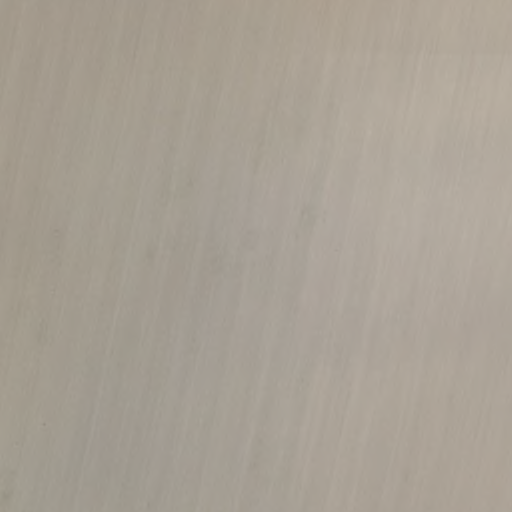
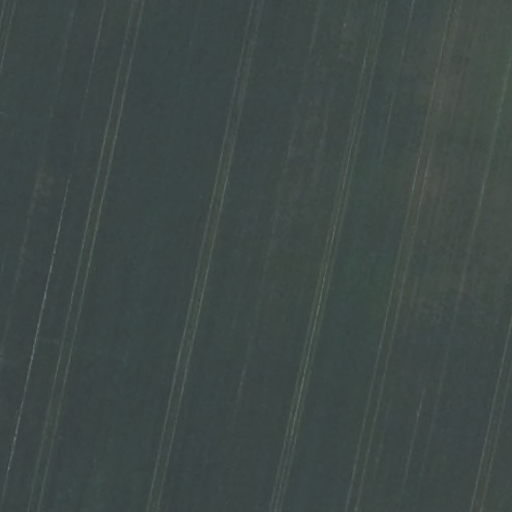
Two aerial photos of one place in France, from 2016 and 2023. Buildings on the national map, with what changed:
[]

